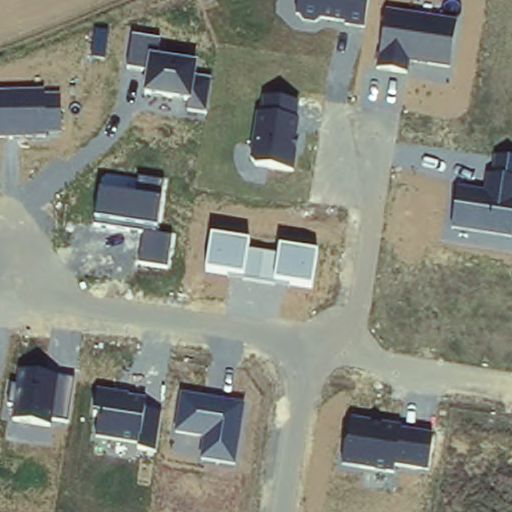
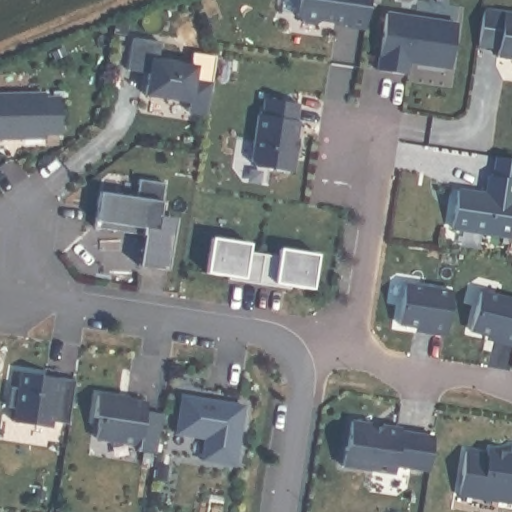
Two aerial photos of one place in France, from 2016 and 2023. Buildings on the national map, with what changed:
unchanged [(365,28),(295,15),(297,0),(369,0),(365,28)]
unchanged [(412,63),(408,77),(377,71),(387,12),(456,22),(451,65),(412,63)]
new [(498,50),(478,47),(483,13),(512,17),(512,60),(497,58),(498,50)]
unchanged [(207,114),(189,110),(190,102),(142,93),(146,72),(128,70),(134,35),(164,41),(160,58),(199,66),(196,77),(212,82),(207,114)]
unchanged [(47,135),(47,140),(0,139),(0,93),(45,92),(45,97),(60,97),(61,133),(47,135)]
unchanged [(296,134),(301,135),(293,171),(252,163),(263,98),(302,105),(296,134)]
unchanged [(456,186),(485,191),(488,173),(495,174),(497,156),(512,159),(512,232),(512,236),(450,227),(456,186)]
unchanged [(139,266),(144,234),(94,226),(95,216),(100,190),(134,195),(137,180),(164,184),(162,200),(158,229),(157,236),(174,239),(170,268),(139,266)]
unchanged [(311,286),(274,281),(242,277),(205,271),(211,238),(249,243),(247,253),(277,257),(280,248),(317,255),(311,286)]
new [(427,335),(428,331),(398,327),(405,287),(452,295),(446,338),(427,335)]
new [(487,337),(471,333),(481,295),(512,303),(512,348),(498,344),(486,341),(487,338),(500,341),(487,337)]
new [(415,329),(428,331),(427,335),(415,333),(415,329)]
unchanged [(67,423),(52,421),(51,428),(12,422),(14,408),(8,407),(12,386),(16,386),(17,372),(76,380),(67,423)]
unchanged [(156,453),(140,450),(140,445),(96,439),(100,417),(94,416),(98,392),(147,401),(145,412),(162,415),(156,453)]
unchanged [(235,464),(201,459),(204,439),(178,433),(184,395),(245,404),(235,464)]
unchanged [(429,468),(395,463),(393,473),(341,464),(350,419),(433,434),(429,468)]
new [(512,506),(457,495),(466,451),(487,455),(487,450),(496,451),(511,454),(512,450),(512,506)]

